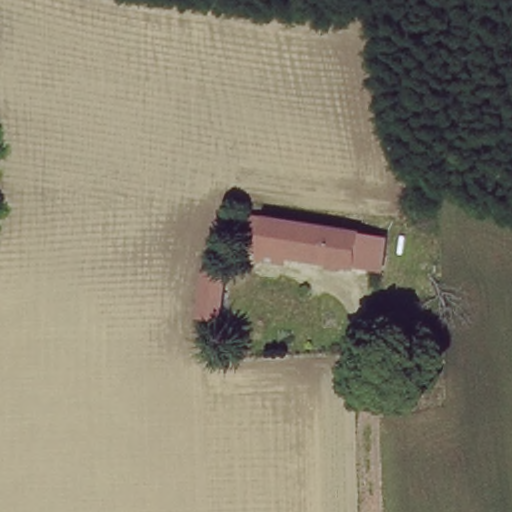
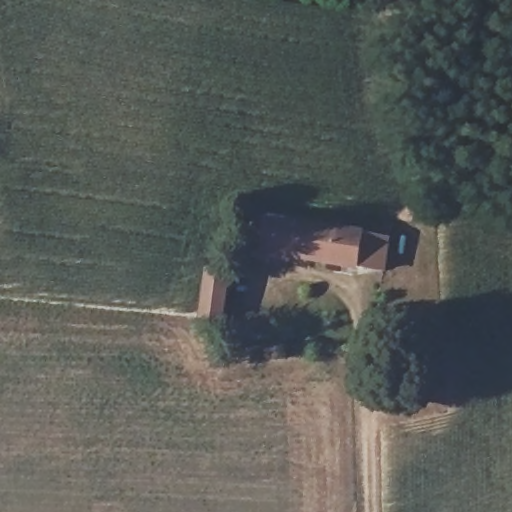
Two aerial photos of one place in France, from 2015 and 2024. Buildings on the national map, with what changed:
unchanged [(253,250),(257,219),(397,241),(391,272),(253,250)]
unchanged [(210,301),(215,268),(233,272),(225,318),(207,316),(210,301)]

